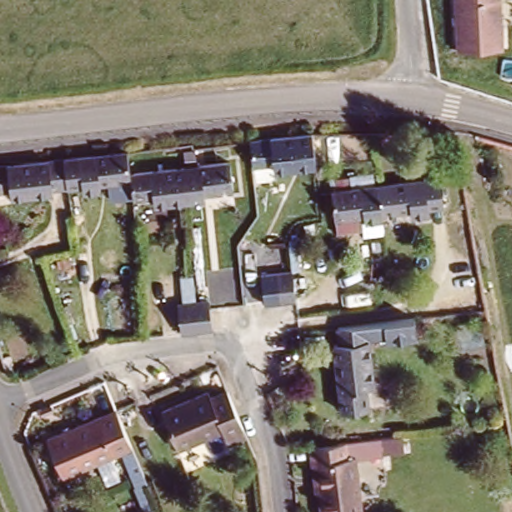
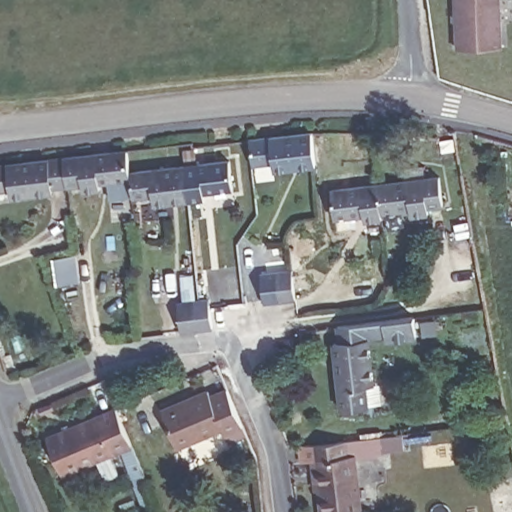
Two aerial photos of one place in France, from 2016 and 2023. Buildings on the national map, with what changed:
unchanged [(456,0),(505,0),(509,40),(458,40),(456,0)]
unchanged [(269,166),(267,158),(248,160),(245,137),(306,128),(312,159),(294,163),(287,163),(269,166)]
unchanged [(444,155),(442,143),(456,141),(458,153),(444,155)]
unchanged [(146,205),(145,194),(124,195),(122,177),(100,179),(93,179),(93,187),(75,189),(75,182),(69,182),(66,153),(120,149),(122,171),(191,165),(222,163),(225,192),(202,195),(195,195),(195,201),(182,202),(163,203),(146,205)]
unchanged [(3,192),(2,185),(0,185),(0,158),(66,153),(69,182),(45,184),(46,188),(27,190),(20,191),(3,192)]
unchanged [(329,219),(325,190),(433,173),(438,202),(422,204),(423,212),(407,214),(406,207),(398,209),(376,211),(377,219),(358,221),(357,215),(350,216),(329,219)]
unchanged [(262,273),(294,270),(297,297),(265,300),(262,273)]
unchanged [(185,306),(217,305),(218,312),(220,333),(187,336),(185,306)]
unchanged [(408,311),(410,331),(380,334),(378,314),(408,311)]
unchanged [(362,316),(369,378),(362,379),(364,401),(337,404),(330,337),(335,337),(333,320),(362,316)]
unchanged [(223,435),(221,430),(175,449),(159,411),(205,392),(207,397),(225,390),(241,429),(223,435)]
unchanged [(138,473),(127,478),(115,449),(58,474),(42,435),(111,408),(138,473)]
unchanged [(350,455),(357,512),(318,512),(315,489),(310,490),(307,460),(305,445),(343,441),(345,456),(350,455)]

